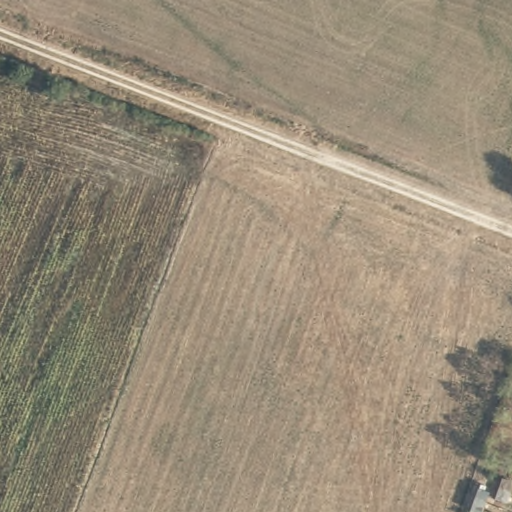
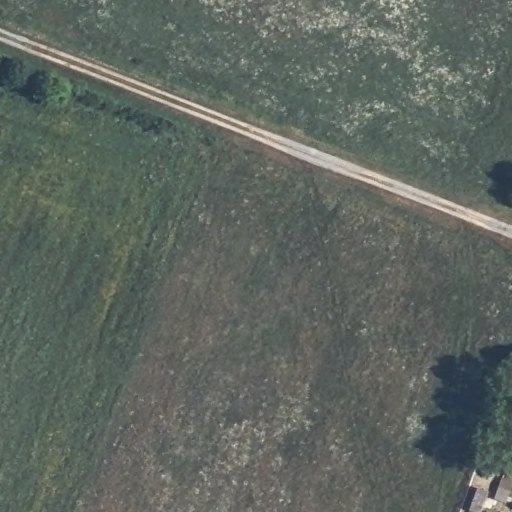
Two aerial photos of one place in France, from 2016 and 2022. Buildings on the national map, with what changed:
[]

